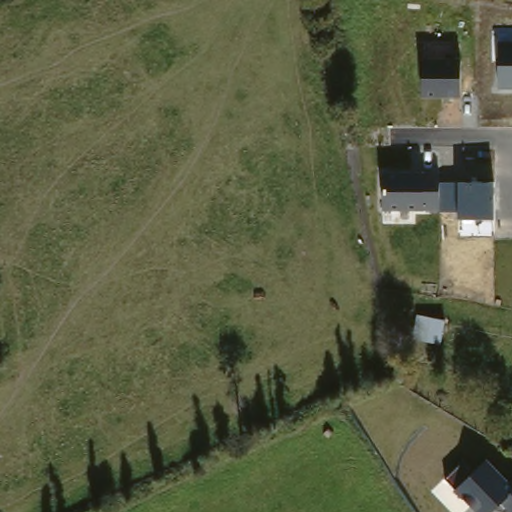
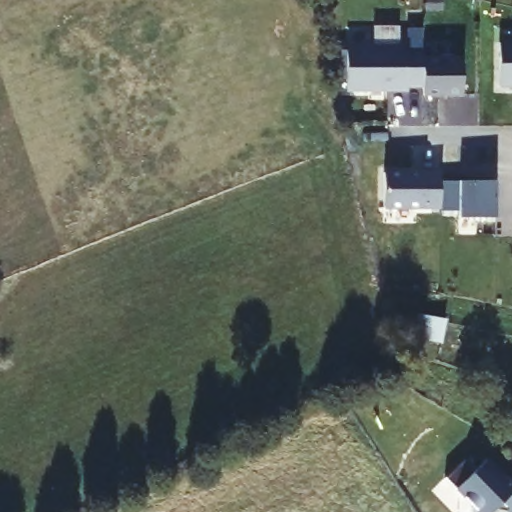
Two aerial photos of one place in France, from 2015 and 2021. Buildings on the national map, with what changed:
unchanged [(498,42),(512,43),(512,88),(498,87),(498,42)]
new [(406,86),(406,91),(346,91),(346,44),(406,43),(408,49),(422,48),(421,60),(421,87),(406,86)]
unchanged [(421,60),(462,60),(462,96),(421,97),(421,60)]
unchanged [(459,218),(459,211),(440,212),(382,211),(382,172),(440,171),(441,182),(459,182),(495,181),(495,218),(459,218)]
unchanged [(441,314),(441,339),(417,339),(414,314),(441,314)]
unchanged [(495,510),(493,512),(476,512),(445,477),(460,465),(470,476),(488,458),(512,483),(512,512),(507,512),(506,511),(495,510)]

